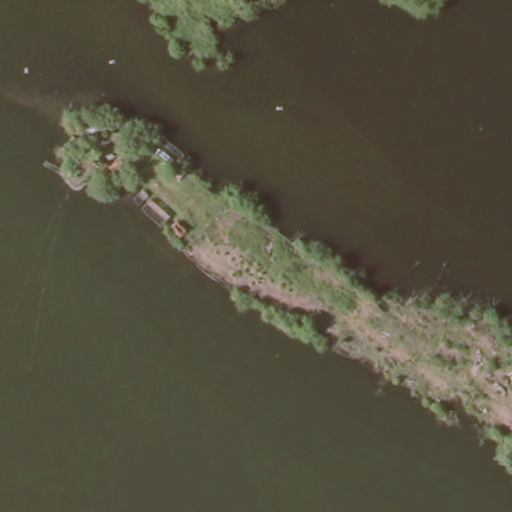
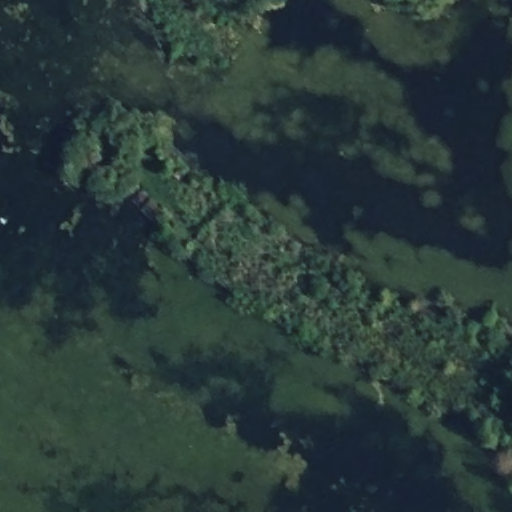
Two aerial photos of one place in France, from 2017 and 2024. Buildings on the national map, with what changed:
unchanged [(63,141),(73,151),(57,169),(46,159),(63,141)]

